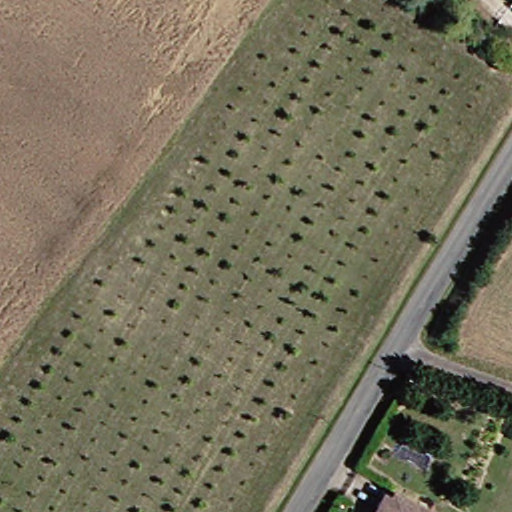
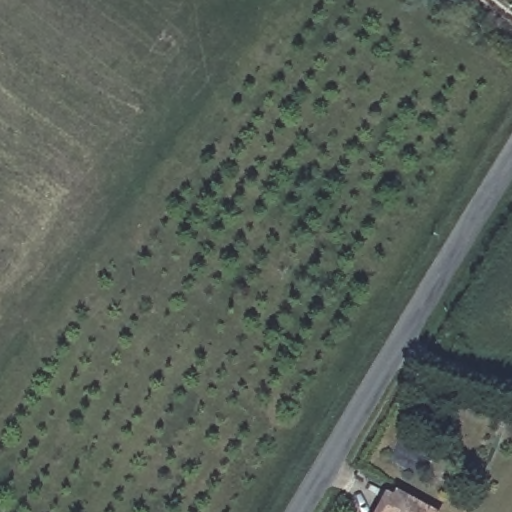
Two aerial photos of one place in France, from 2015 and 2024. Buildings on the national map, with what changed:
unchanged [(398,495),(428,512),(387,512),(398,495)]

